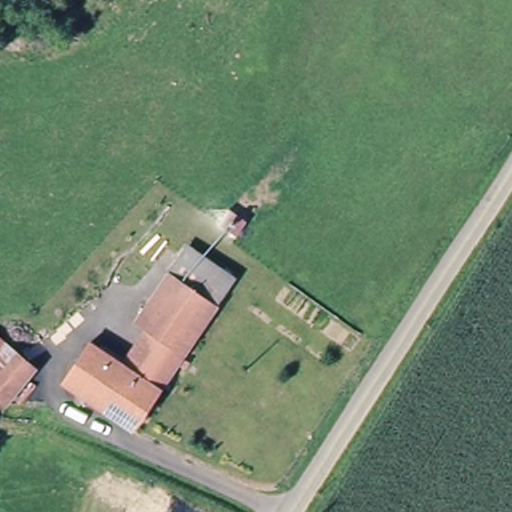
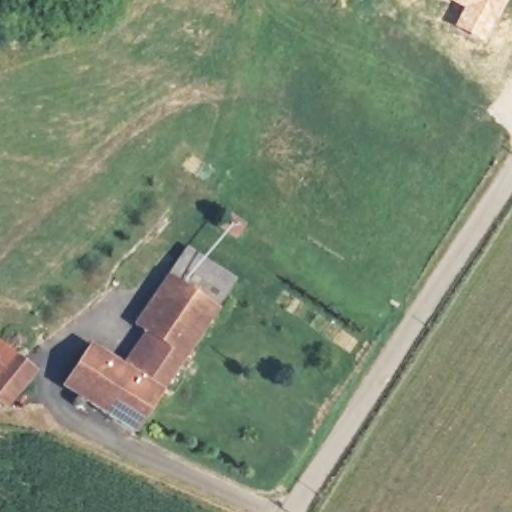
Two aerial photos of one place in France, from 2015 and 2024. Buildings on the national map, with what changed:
new [(452,26),(461,10),(445,0),(504,0),(482,43),(452,26)]
unchanged [(172,335),(144,319),(185,257),(232,288),(179,361),(162,355),(172,335)]
unchanged [(172,335),(162,355),(179,361),(127,434),(59,388),(85,352),(92,357),(127,381),(150,346),(133,335),(144,319),(172,335)]
unchanged [(29,371),(0,405),(0,347),(5,351),(22,366),(29,371)]

